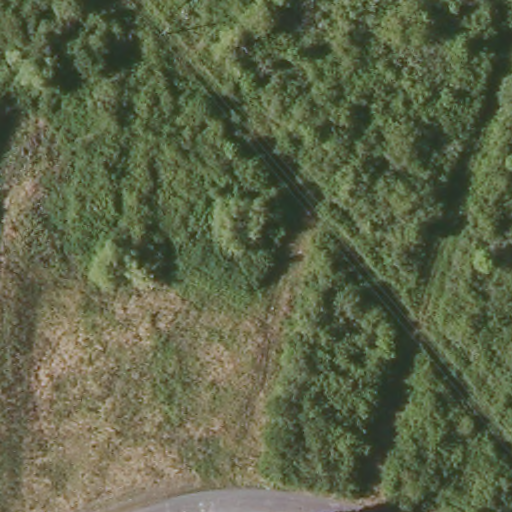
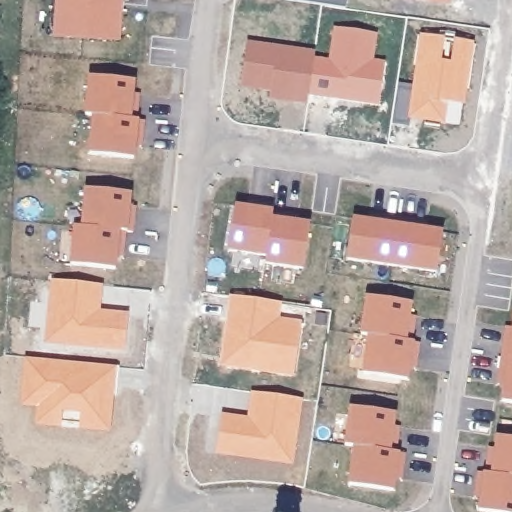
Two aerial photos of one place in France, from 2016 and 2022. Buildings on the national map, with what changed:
new [(50,37),(53,0),(118,0),(115,42),(50,37)]
new [(296,2),(296,0),(347,0),(345,9),(296,2)]
new [(427,0),(448,0),(447,3),(427,0)]
new [(314,60),(330,62),(335,29),(375,35),(371,62),(385,65),(378,106),(308,95),(314,60)]
new [(397,89),(413,91),(422,36),(471,43),(465,84),(448,82),(442,122),(424,119),(425,115),(411,113),(409,124),(392,122),(397,89)]
new [(240,87),(247,43),(315,53),(314,60),(308,95),(307,105),(290,102),(269,99),(270,91),(240,87)]
new [(92,77),(137,81),(135,101),(140,102),(138,120),(96,116),(88,115),(92,77)]
new [(96,116),(138,120),(146,121),(145,140),(138,139),(137,159),(92,154),(96,116)]
new [(87,189),(132,194),(130,213),(135,214),(133,232),(126,231),(83,227),(87,189)]
new [(235,205),(255,207),(255,202),(273,205),(267,255),(228,249),(235,205)]
new [(273,212),(291,215),(290,221),(310,223),(303,267),(265,262),(273,212)]
new [(360,217),(379,221),(380,215),(398,217),(391,267),(353,262),(360,217)]
new [(398,217),(417,220),(416,227),(435,229),(429,273),(391,267),(398,217)]
new [(76,226),(83,227),(126,231),(125,250),(118,249),(117,269),(72,265),(76,226)]
new [(53,280),(101,285),(99,301),(95,301),(94,312),(127,315),(123,349),(47,341),(53,280)]
new [(232,296),(281,303),(278,321),(302,323),(295,376),(248,368),(223,365),(225,353),(232,296)]
new [(368,297),(412,303),(410,323),(415,323),(412,342),(370,336),(362,335),(368,297)]
new [(505,337),(510,338),(512,327),(512,357),(502,355),(505,337)]
new [(370,336),(412,342),(420,343),(417,362),(412,361),(408,380),(364,373),(370,336)]
new [(502,355),(512,357),(512,395),(502,394),(505,375),(499,373),(502,355)]
new [(27,358),(112,366),(110,386),(113,386),(108,433),(79,430),(80,414),(62,412),(61,428),(37,426),(20,425),(25,377),(27,358)]
new [(224,416),(255,421),(257,410),(252,409),(254,392),(302,399),(292,463),(258,458),(219,452),(220,445),(224,416)]
new [(352,407),(396,414),(393,433),(399,434),(397,453),(355,447),(347,445),(352,407)]
new [(488,455),(494,456),(497,436),(512,438),(512,477),(485,473),(488,455)]
new [(355,447),(397,453),(405,454),(403,472),(397,471),(395,491),(350,485),(355,447)]
new [(478,472),(485,473),(512,477),(512,512),(488,512),(478,511),(481,491),(475,490),(478,472)]

